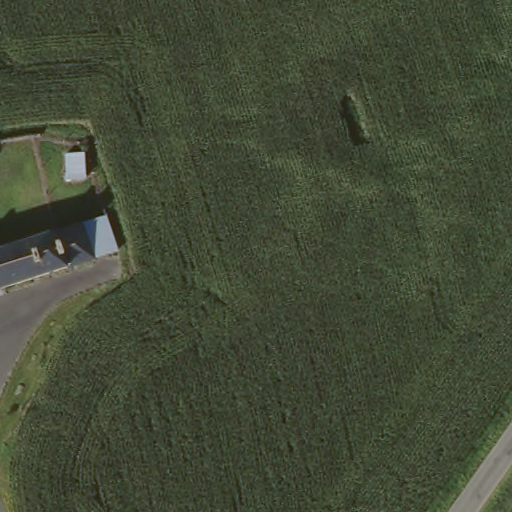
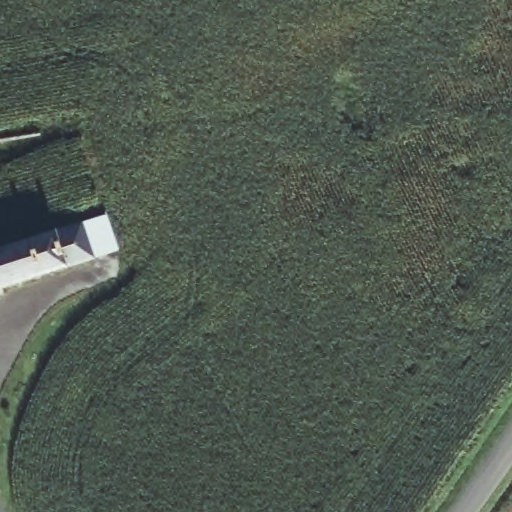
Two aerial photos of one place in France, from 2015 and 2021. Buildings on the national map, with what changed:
unchanged [(73,229),(95,223),(102,257),(10,282),(0,285),(0,251),(73,229)]

